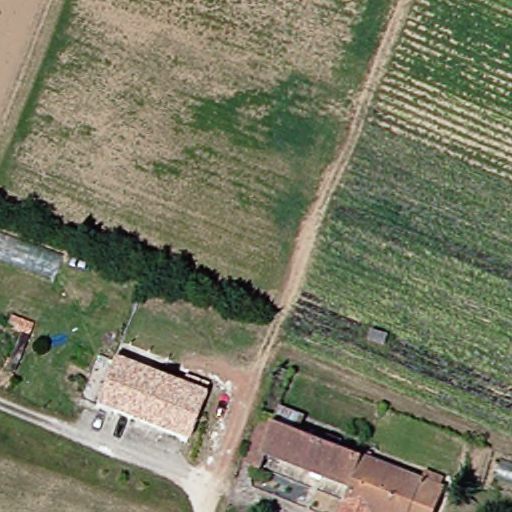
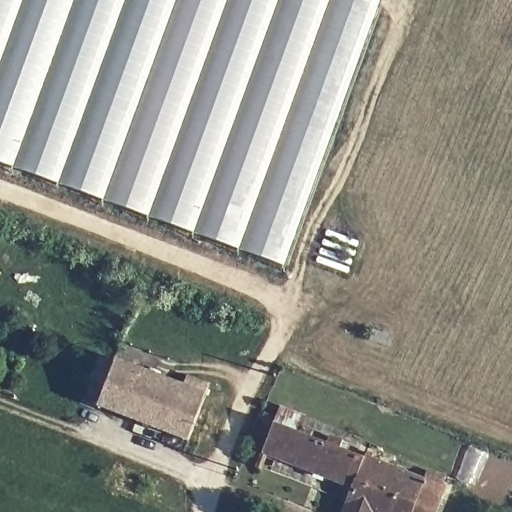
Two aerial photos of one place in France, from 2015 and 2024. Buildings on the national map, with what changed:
new [(0,170),(0,0),(383,0),(284,279),(0,170)]
unchanged [(192,443),(105,409),(122,365),(126,367),(133,350),(175,366),(169,383),(209,399),(192,443)]
unchanged [(360,492),(279,460),(274,472),(266,470),(255,465),(273,416),(285,420),(290,410),(315,419),(308,437),(372,462),(360,492)]
unchanged [(372,462),(451,493),(444,512),(362,512),(353,508),(360,492),(372,462)]

